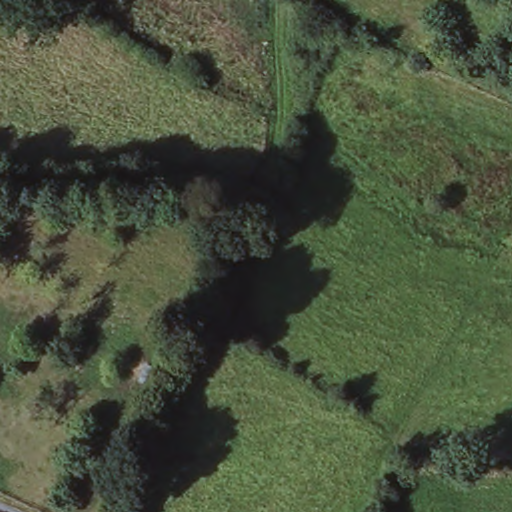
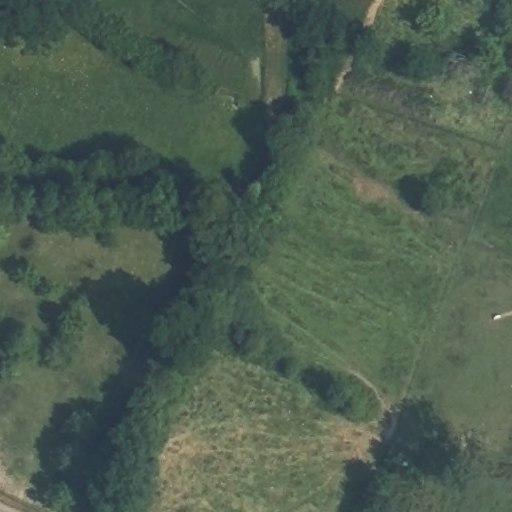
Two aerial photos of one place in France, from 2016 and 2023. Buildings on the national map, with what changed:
[]

